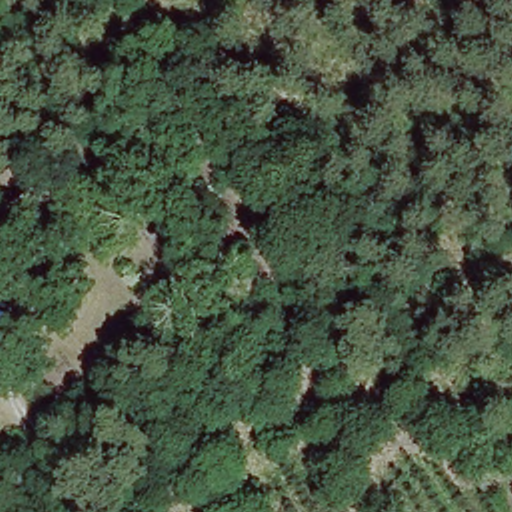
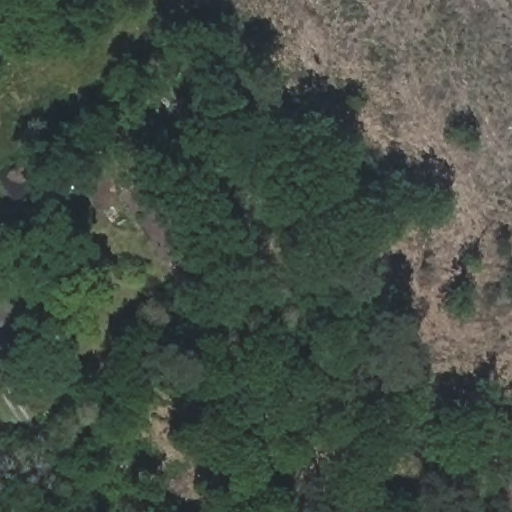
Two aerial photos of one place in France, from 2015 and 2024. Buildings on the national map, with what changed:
unchanged [(49,179),(14,201),(0,179),(0,176),(38,155),(49,179)]

